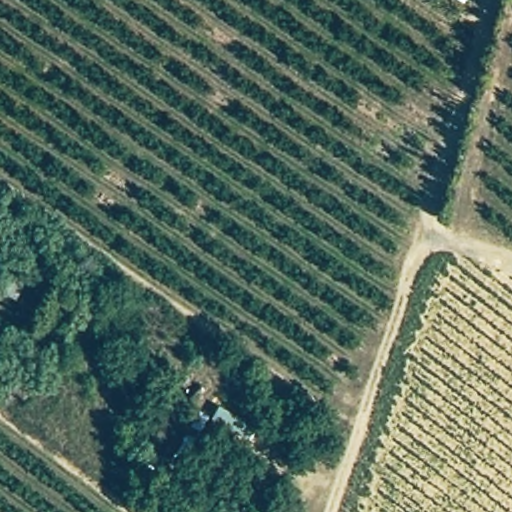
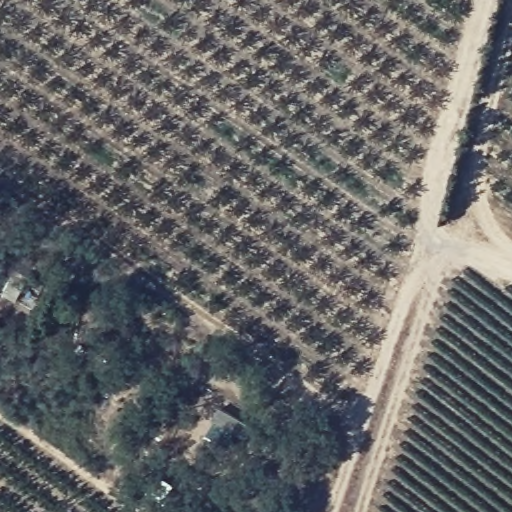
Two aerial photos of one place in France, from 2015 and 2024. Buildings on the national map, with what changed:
unchanged [(0,298),(0,291),(8,277),(28,286),(20,307),(0,298)]

